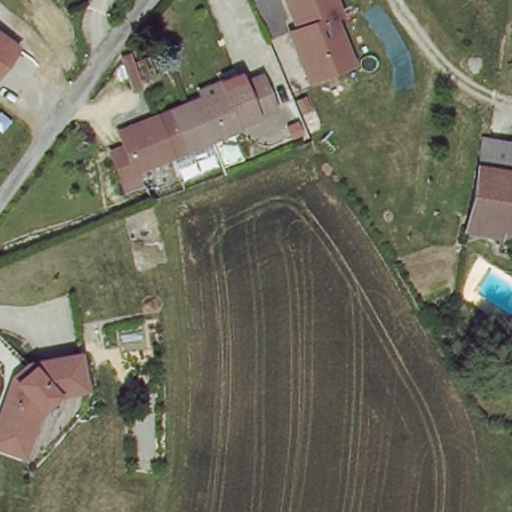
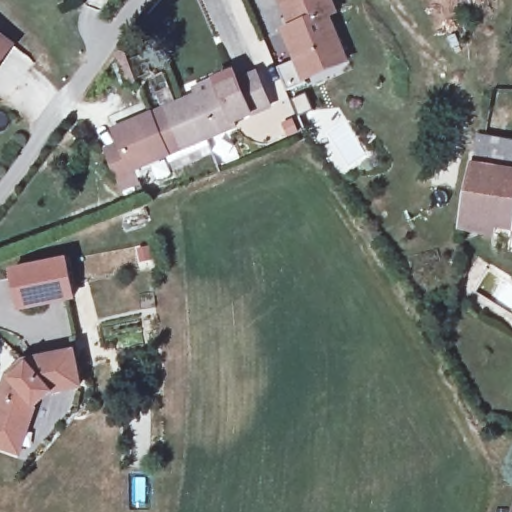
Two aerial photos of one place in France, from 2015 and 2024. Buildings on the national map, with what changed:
unchanged [(327,19),(345,66),(340,68),(304,83),(285,34),(293,30),(281,0),(328,0),(334,16),(327,19)]
unchanged [(0,62),(0,44),(9,50),(0,62)]
unchanged [(182,105),(199,97),(193,84),(235,65),(239,76),(261,67),(274,99),(236,117),(238,124),(208,138),(161,160),(137,171),(140,178),(124,184),(114,154),(126,148),(120,134),(144,123),(182,105)]
unchanged [(490,137),(512,140),(512,168),(475,162),(478,136),(490,137)]
unchanged [(467,225),(472,191),(475,162),(512,168),(512,232),(497,229),(467,225)]
new [(18,311),(10,269),(68,258),(76,301),(18,311)]
unchanged [(3,385),(33,359),(71,351),(78,384),(48,390),(33,404),(23,432),(16,451),(0,446),(0,392),(3,385)]

